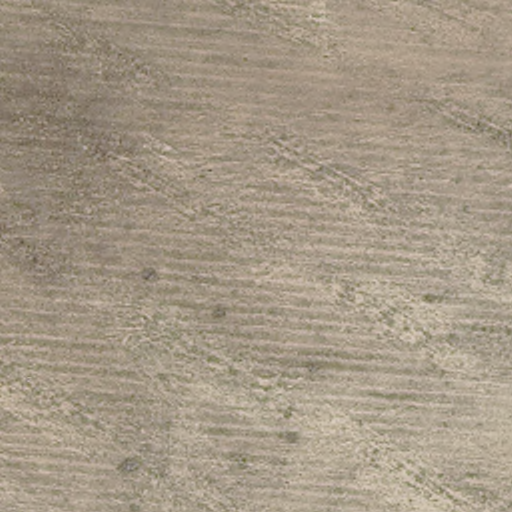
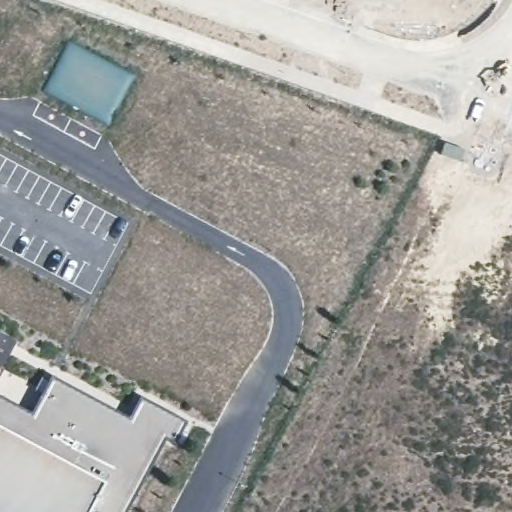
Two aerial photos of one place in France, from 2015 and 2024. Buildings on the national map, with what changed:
new [(0,373),(0,370),(1,371),(0,373)]
new [(52,377),(131,418),(141,399),(186,422),(175,442),(165,437),(124,512),(105,512),(92,505),(88,512),(0,512),(0,397),(33,415),(52,377)]

